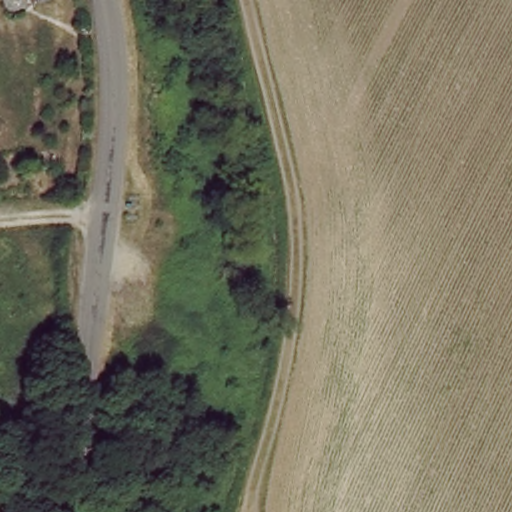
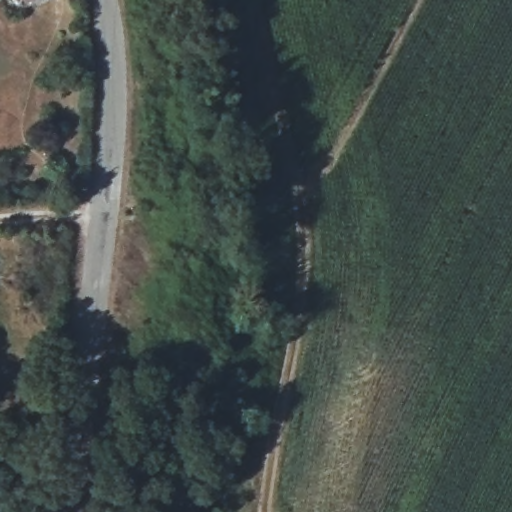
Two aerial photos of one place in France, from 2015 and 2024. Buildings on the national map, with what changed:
unchanged [(25,0),(45,0),(29,7),(25,0)]

